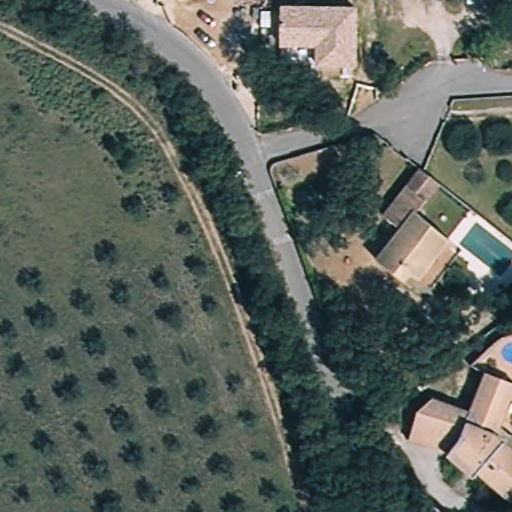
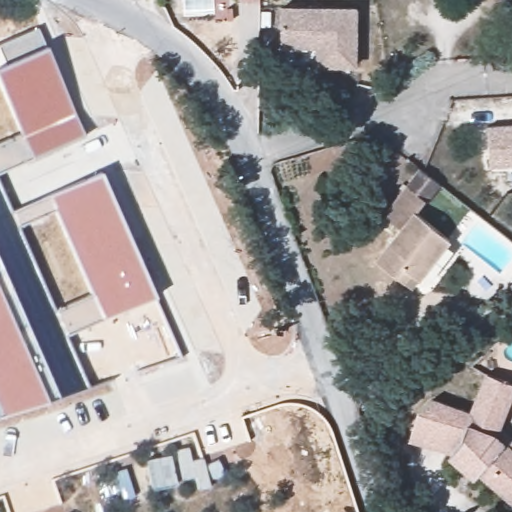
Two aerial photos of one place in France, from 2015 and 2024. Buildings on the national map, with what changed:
unchanged [(284,46),(285,6),(357,9),(357,65),(317,65),(316,47),(284,46)]
new [(47,46),(84,135),(33,158),(0,173),(0,141),(19,132),(0,86),(0,44),(37,28),(47,46)]
new [(512,124),(512,164),(490,165),(489,125),(512,124)]
unchanged [(400,279),(374,255),(394,234),(391,231),(398,224),(394,220),(386,211),(412,184),(426,169),(433,175),(444,185),(428,201),(418,212),(449,242),(415,278),(407,286),(400,279)]
new [(50,195),(100,173),(154,296),(103,319),(65,336),(88,388),(0,417),(0,186),(11,211),(50,195)]
unchanged [(512,280),(512,298),(502,289),(512,280)]
unchanged [(501,440),(512,451),(512,506),(467,461),(414,440),(414,437),(418,425),(425,414),(434,405),(446,404),(471,414),(491,374),(512,382),(512,404),(501,440)]

